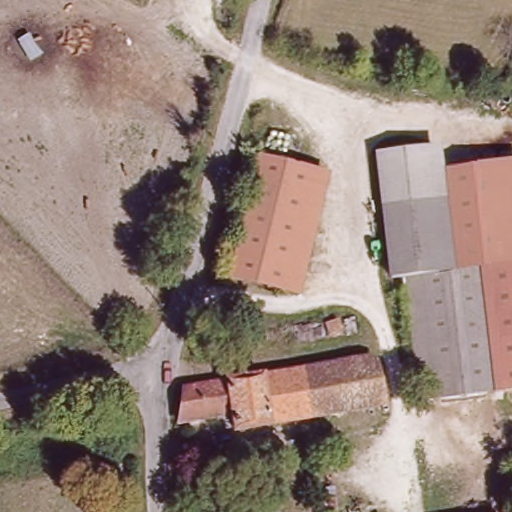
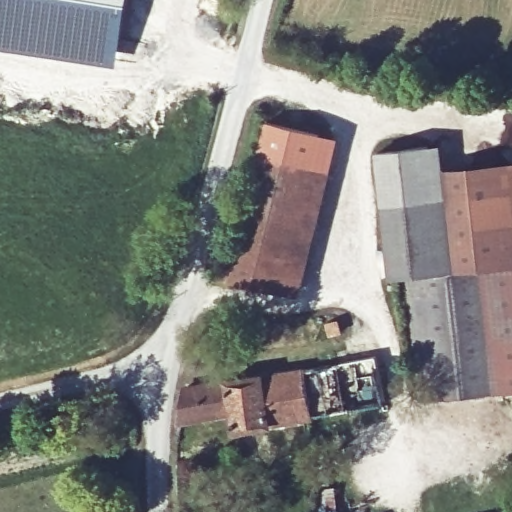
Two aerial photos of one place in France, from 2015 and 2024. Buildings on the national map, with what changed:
new [(117,65),(0,46),(0,0),(128,0),(117,65)]
unchanged [(450,171),(512,162),(512,388),(496,390),(481,267),(445,271),(430,146),(447,142),(450,171)]
unchanged [(496,390),(423,398),(407,276),(395,277),(379,152),(430,146),(445,271),(481,267),(496,390)]
unchanged [(312,169),(285,291),(232,278),(262,148),(315,161),(312,169)]
unchanged [(301,295),(285,291),(312,169),(315,161),(331,164),(301,295)]
unchanged [(368,360),(380,367),(385,407),(309,421),(303,372),(368,360)]
unchanged [(309,421),(237,433),(235,417),(183,425),(187,391),(303,372),(309,421)]

